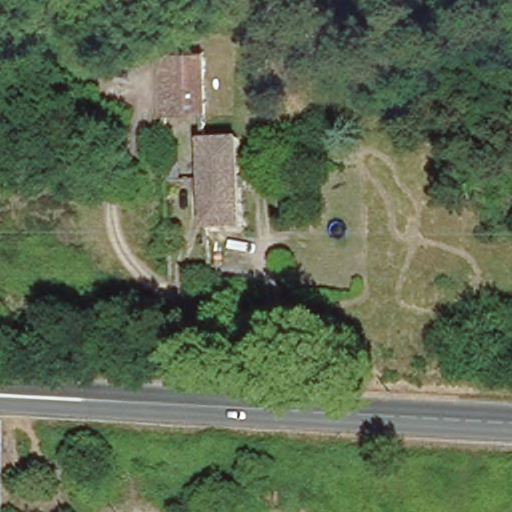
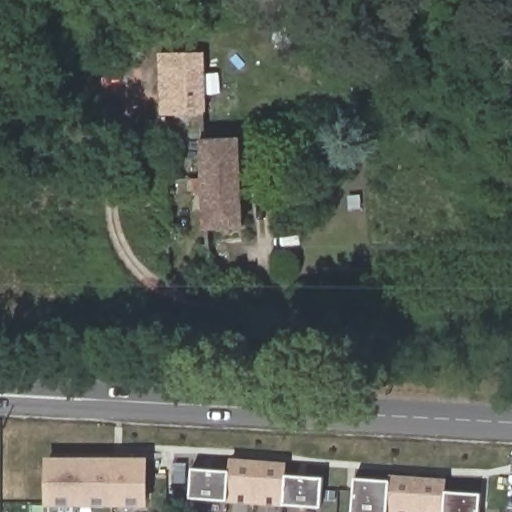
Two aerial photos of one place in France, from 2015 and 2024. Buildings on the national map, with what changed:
unchanged [(159,49),(201,49),(203,109),(161,110),(159,49)]
unchanged [(236,133),(240,221),(207,223),(204,223),(200,135),(203,135),(236,133)]
new [(146,455),(146,500),(45,500),(45,455),(146,455)]
new [(229,467),(230,457),(283,461),(284,473),(320,475),(320,503),(191,495),(192,466),(229,467)]
new [(389,472),(444,475),(444,488),(480,490),(478,512),(354,512),(354,475),(390,476),(389,472)]
demolished [(66,501),(66,512),(50,512),(50,501),(66,501)]

